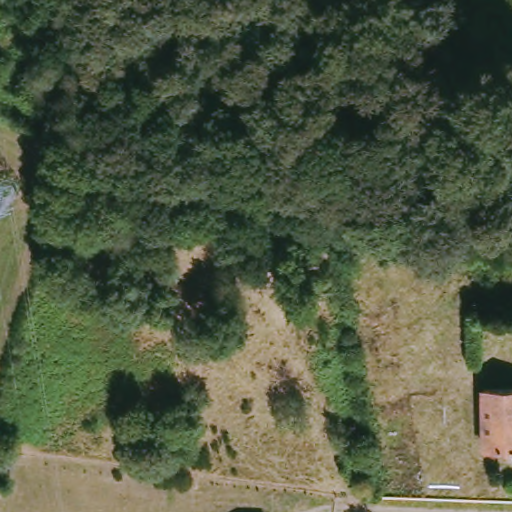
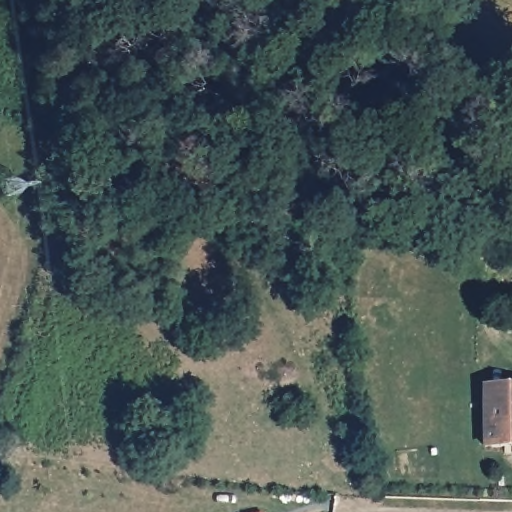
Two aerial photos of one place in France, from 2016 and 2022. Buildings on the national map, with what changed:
unchanged [(512,387),(512,445),(487,445),(487,387),(512,387)]

